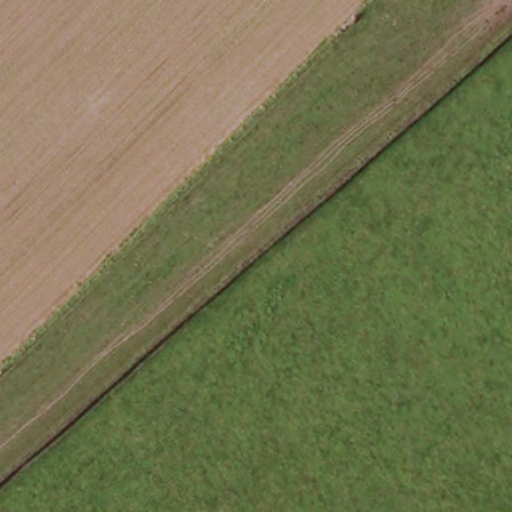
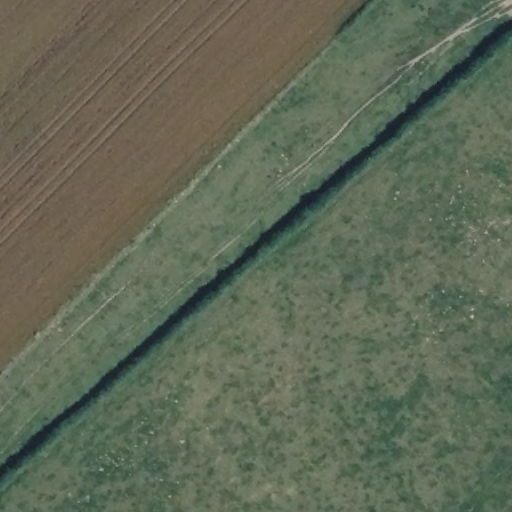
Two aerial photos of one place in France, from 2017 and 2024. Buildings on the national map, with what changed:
[]

